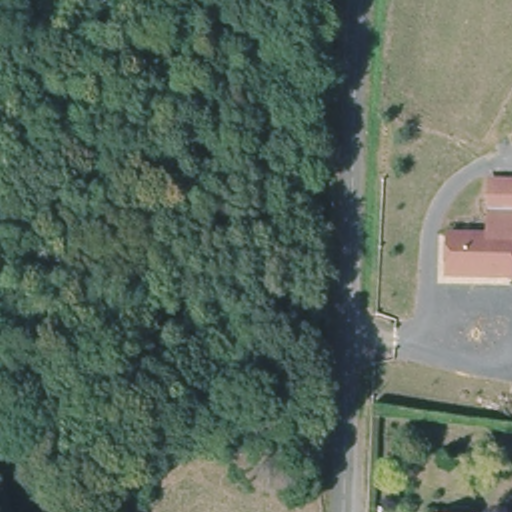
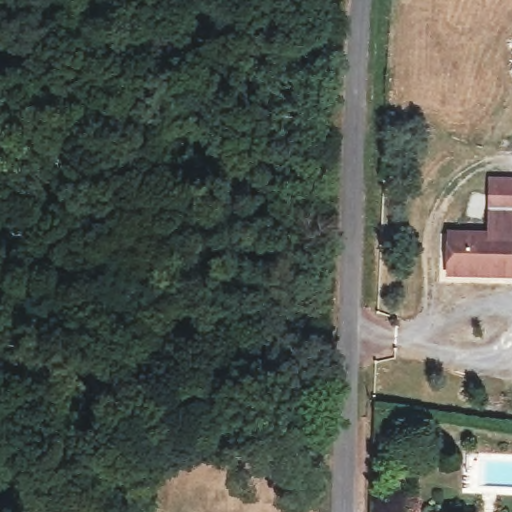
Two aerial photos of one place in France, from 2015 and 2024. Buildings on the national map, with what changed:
unchanged [(447,230),(487,232),(491,179),(512,179),(512,274),(444,269),(447,230)]

